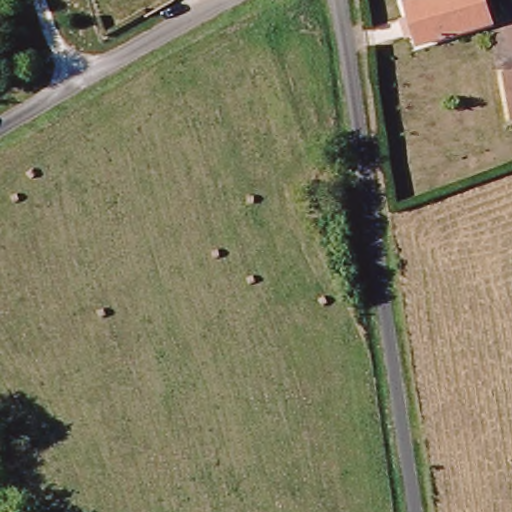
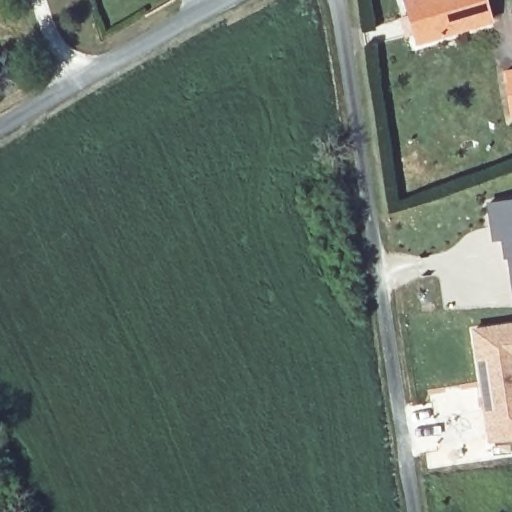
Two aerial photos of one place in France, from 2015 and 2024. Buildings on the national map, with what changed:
unchanged [(400,1),(403,0),(479,0),(485,21),(413,44),(400,1)]
unchanged [(506,119),(498,74),(512,72),(512,118),(506,119)]
new [(511,306),(509,288),(507,271),(505,257),(501,256),(498,237),(490,238),(488,227),(485,203),(512,199),(512,305),(511,306)]
new [(512,323),(512,436),(485,440),(469,330),(512,323)]

